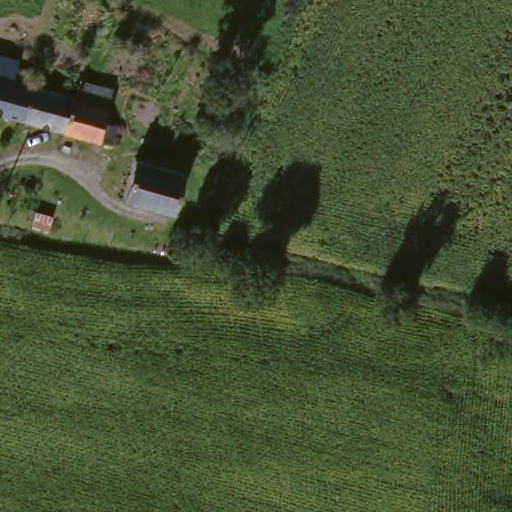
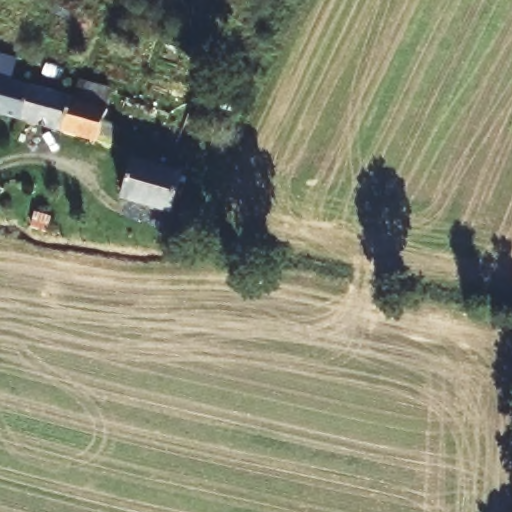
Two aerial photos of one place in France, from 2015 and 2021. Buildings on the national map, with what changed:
unchanged [(81,76),(110,84),(104,106),(110,108),(107,116),(119,120),(113,141),(24,115),(32,85),(74,98),(81,76)]
unchanged [(24,115),(0,108),(0,77),(32,85),(24,115)]
unchanged [(184,169),(172,206),(125,193),(136,154),(184,169)]

